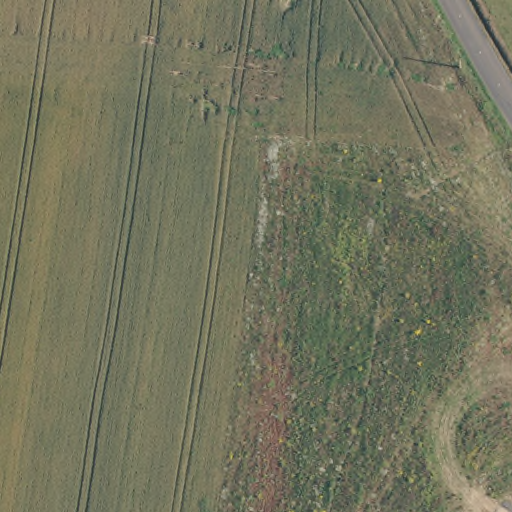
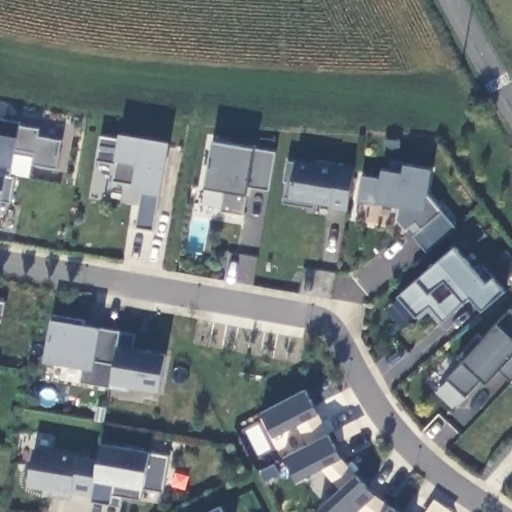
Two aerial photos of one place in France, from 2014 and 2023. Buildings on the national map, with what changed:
new [(21,121),(21,124),(40,127),(39,135),(62,139),(57,168),(34,164),(35,152),(16,150),(12,166),(11,175),(16,176),(12,202),(2,201),(0,211),(0,117),(21,121)]
new [(161,195),(154,229),(137,226),(144,192),(134,190),(135,185),(114,180),(117,163),(97,160),(102,135),(120,139),(121,132),(171,142),(161,195)]
new [(270,190),(249,186),(247,193),(244,214),(222,211),(227,190),(206,187),(214,141),(255,149),(277,152),(270,190)]
new [(297,161),(317,164),(318,159),(355,165),(347,211),(330,207),(331,204),(316,200),(315,207),(283,202),(289,160),(297,161)]
new [(362,175),(381,179),(383,169),(392,170),(392,162),(405,164),(432,168),(428,194),(457,226),(427,251),(415,235),(417,234),(410,226),(407,230),(397,217),(399,206),(378,203),(357,201),(362,175)]
new [(399,296),(418,280),(456,247),(477,272),(483,263),(494,276),(507,290),(483,310),(472,297),(466,302),(443,321),(431,305),(417,317),(399,296)]
new [(0,317),(0,300),(7,301),(4,317),(0,317)]
new [(464,360),(460,356),(478,335),(485,340),(498,325),(512,308),(512,381),(500,371),(487,383),(483,380),(467,397),(447,378),(464,360)]
new [(128,386),(127,391),(111,388),(81,382),(84,367),(45,361),(52,318),(102,326),(136,333),(134,347),(168,352),(160,391),(128,386)]
new [(310,446),(300,426),(276,438),(263,413),(307,391),(343,460),(377,497),(399,512),(323,512),(321,510),(342,490),(323,470),(299,483),(286,458),(310,446)]
new [(164,492),(143,488),(141,499),(123,496),(122,506),(92,501),(92,497),(28,486),(35,448),(98,458),(102,442),(151,451),(170,456),(164,492)]
new [(222,508),(224,512),(214,512),(222,508)]

